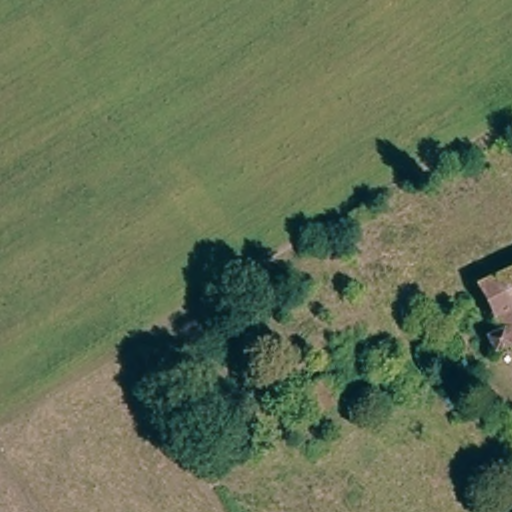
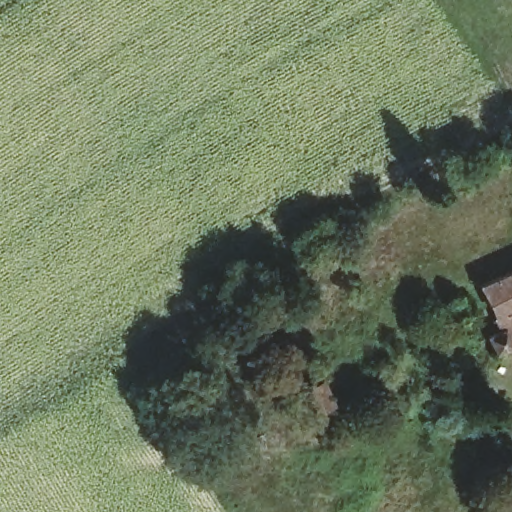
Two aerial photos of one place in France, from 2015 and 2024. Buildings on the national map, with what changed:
unchanged [(469,340),(480,334),(462,289),(512,267),(512,344),(476,360),(469,340)]
unchanged [(295,422),(283,403),(303,391),(315,411),(295,422)]

